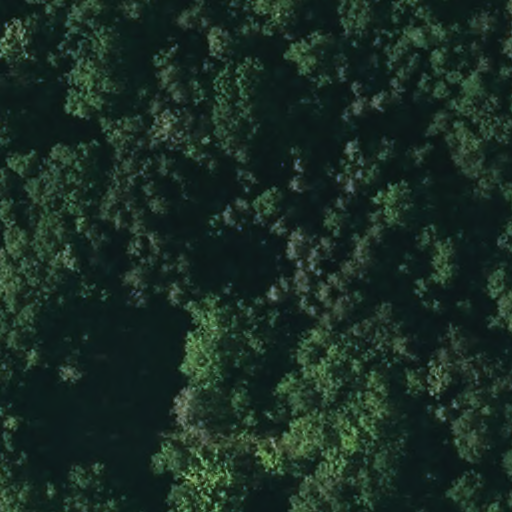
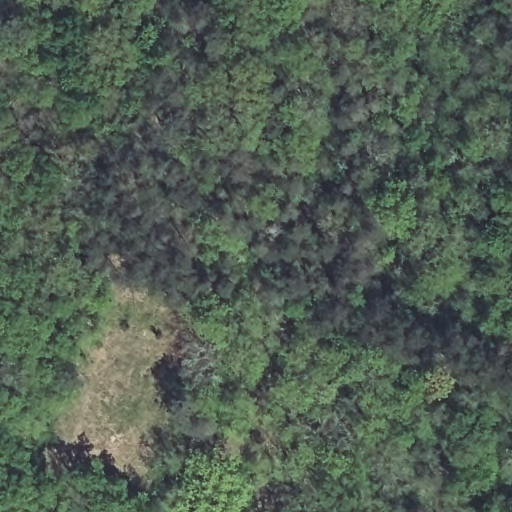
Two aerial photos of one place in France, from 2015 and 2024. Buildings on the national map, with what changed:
unchanged [(238,109),(238,114),(232,120),(227,119),(221,113),(222,108),(225,103),(232,103),(238,109)]

